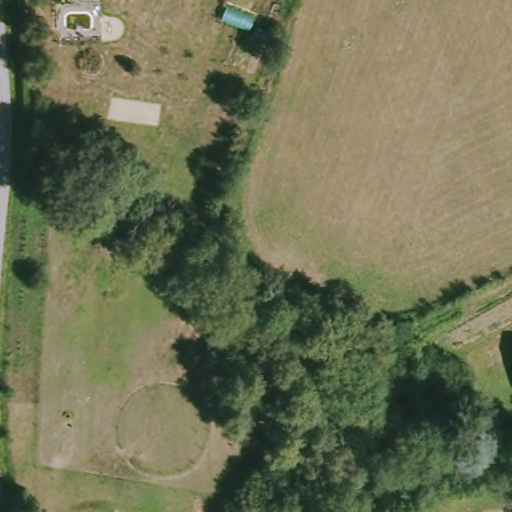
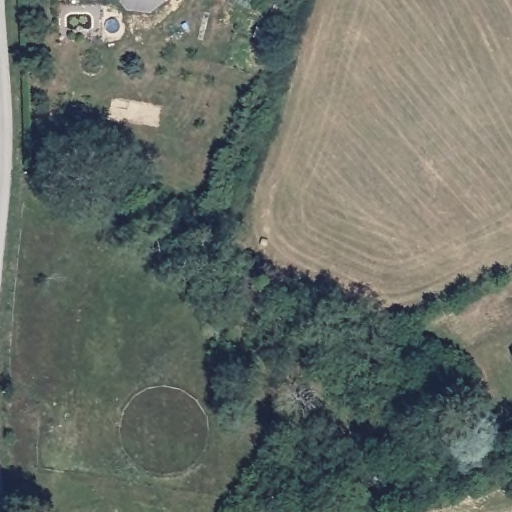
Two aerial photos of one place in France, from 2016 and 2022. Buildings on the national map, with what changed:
unchanged [(497,434),(495,432),(492,421),(512,415),(512,431),(497,434)]

